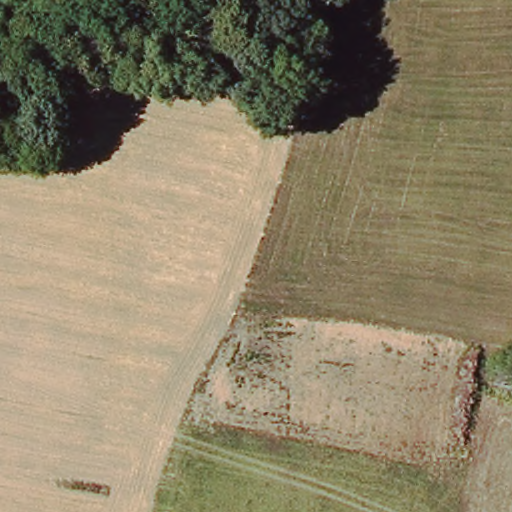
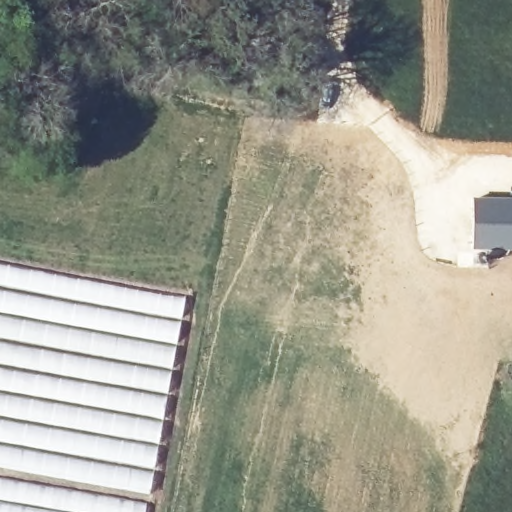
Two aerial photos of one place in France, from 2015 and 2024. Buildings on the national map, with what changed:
new [(473,197),(512,197),(512,250),(472,250),(473,197)]
new [(150,498),(148,512),(0,512),(0,262),(186,297),(150,498)]
demolished [(0,486),(149,507),(147,512),(0,512),(0,486)]

